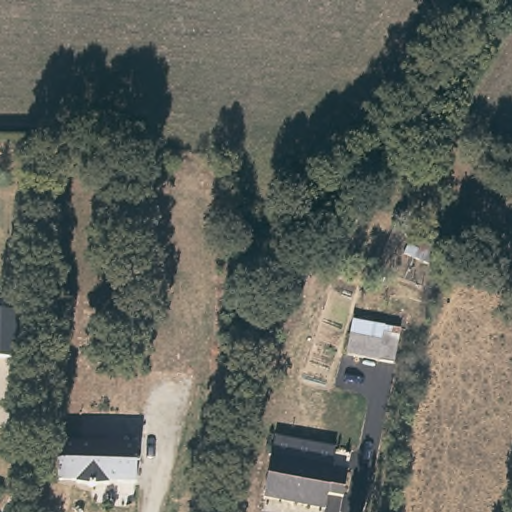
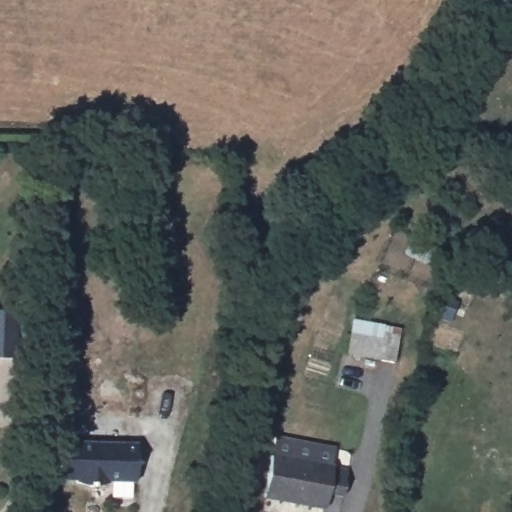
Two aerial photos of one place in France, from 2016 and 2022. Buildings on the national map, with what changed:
unchanged [(421,247),(418,251),(433,260),(427,270),(413,263),(417,255),(409,251),(413,244),(421,247)]
unchanged [(307,281),(297,308),(278,301),(288,274),(307,281)]
unchanged [(0,358),(0,311),(20,311),(19,359),(0,358)]
unchanged [(400,328),(394,362),(347,352),(353,320),(400,328)]
unchanged [(79,442),(79,447),(105,448),(105,443),(107,443),(136,444),(135,482),(107,482),(107,484),(104,485),(91,488),(75,483),(75,481),(56,480),(57,442),(79,442)]
unchanged [(346,473),(342,501),(328,498),(325,512),(314,512),(262,502),(270,460),(346,473)]

